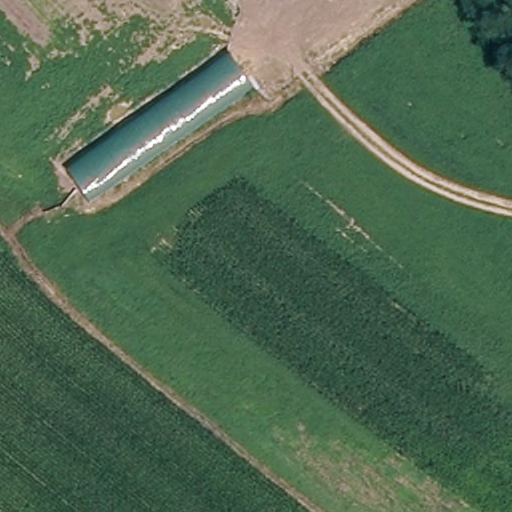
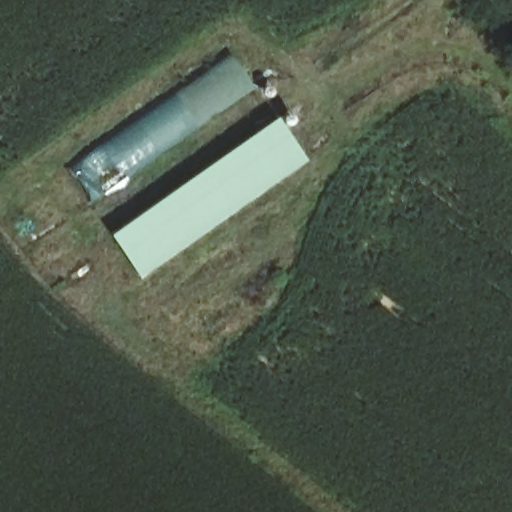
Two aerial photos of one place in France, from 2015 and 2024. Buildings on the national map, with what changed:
unchanged [(87,207),(60,167),(225,55),(254,88),(87,207)]
new [(274,119),(302,160),(138,275),(109,234),(274,119)]

